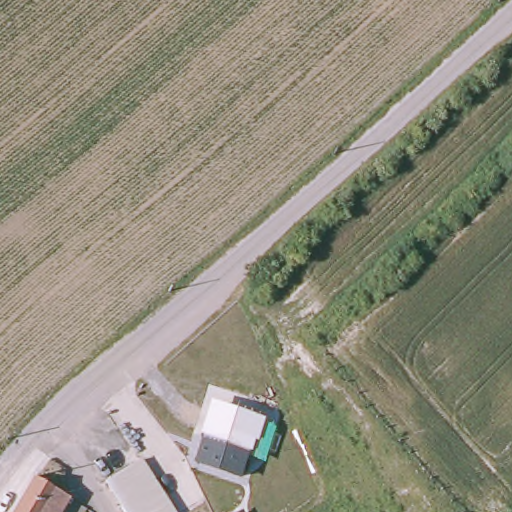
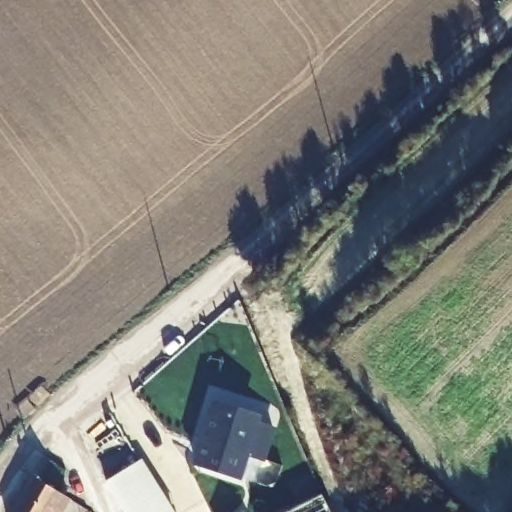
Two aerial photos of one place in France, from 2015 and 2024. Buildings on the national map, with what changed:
unchanged [(265,417),(257,443),(252,442),(242,480),(190,463),(211,402),(265,417)]
unchanged [(138,462),(170,512),(123,512),(105,483),(138,462)]
unchanged [(70,502),(65,512),(16,512),(35,482),(70,502)]
new [(322,496),(330,512),(288,512),(322,496)]
unchanged [(70,502),(86,512),(65,512),(70,502)]

